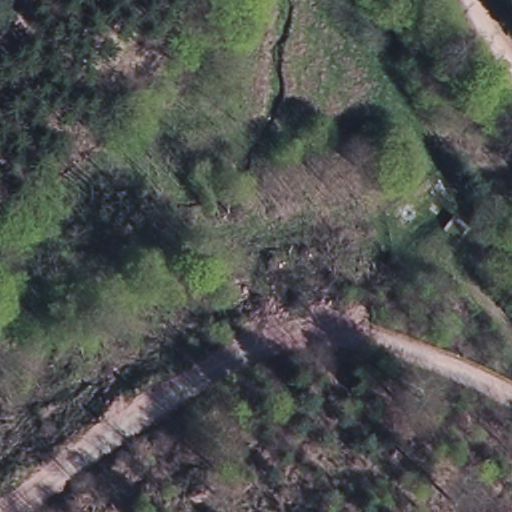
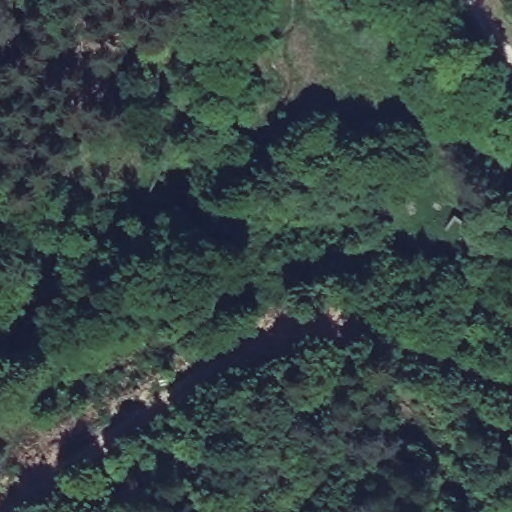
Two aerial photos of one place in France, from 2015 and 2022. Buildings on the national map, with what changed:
unchanged [(472,227),(470,230),(463,240),(458,236),(446,227),(455,214),(472,227)]

